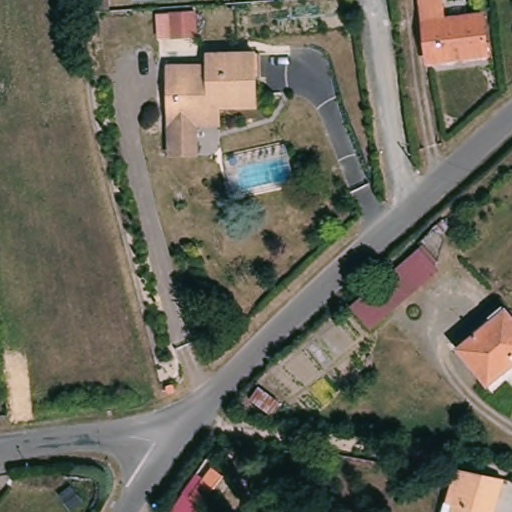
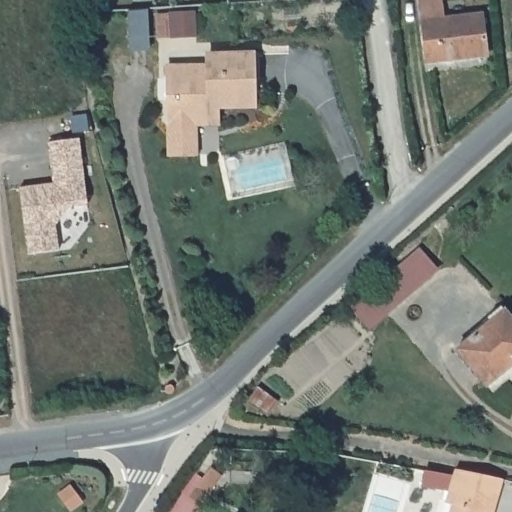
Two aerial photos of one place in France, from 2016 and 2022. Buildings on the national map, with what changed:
unchanged [(492,52),(432,59),(425,0),(445,0),(447,16),(487,12),(492,52)]
new [(149,8),(151,45),(131,46),(129,9),(149,8)]
new [(171,13),(195,11),(196,37),(159,39),(157,14),(171,13)]
unchanged [(200,121),(200,150),(174,151),(173,121),(172,96),(172,83),(172,62),(212,61),(212,50),(259,49),(260,103),(222,104),(223,120),(200,121)]
new [(53,171),(49,142),(80,138),(88,204),(69,206),(55,223),(59,249),(30,253),(21,187),(55,182),(53,171)]
unchanged [(376,327),(356,304),(425,244),(445,267),(376,327)]
unchanged [(493,383),(463,346),(511,306),(512,308),(512,367),(507,371),(493,383)]
unchanged [(185,396),(183,398),(180,400),(179,400),(179,399),(178,399),(177,398),(176,398),(176,396),(175,395),(175,394),(176,393),(176,392),(176,391),(177,390),(178,390),(180,389),(181,389),(182,389),(182,390),(183,390),(184,390),(184,391),(185,392),(185,393),(186,394),(186,395),(185,396)]
unchanged [(280,420),(260,405),(269,394),(289,409),(280,420)]
unchanged [(176,512),(209,467),(221,476),(194,512),(176,512)]
unchanged [(459,512),(461,504),(469,477),(471,471),(512,480),(512,504),(510,512),(459,512)]

